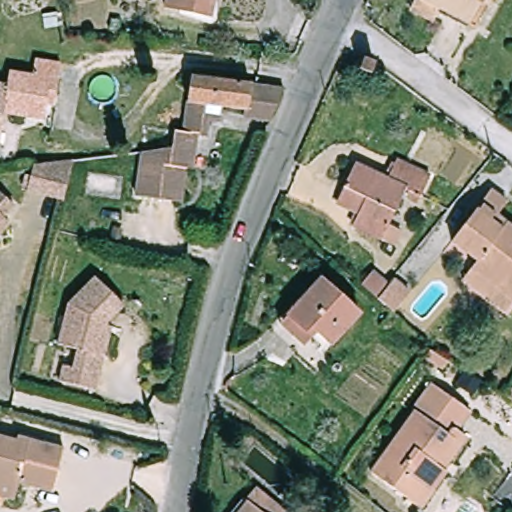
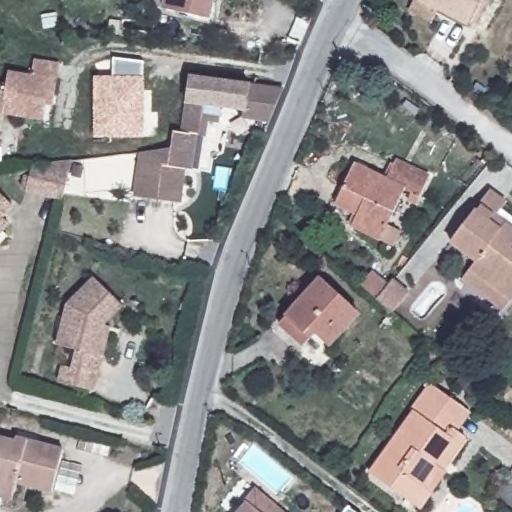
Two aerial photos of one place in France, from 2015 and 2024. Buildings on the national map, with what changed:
unchanged [(167,8),(168,0),(217,0),(214,18),(167,8)]
unchanged [(443,4),(436,18),(412,4),(414,0),(485,0),(473,21),(443,4)]
new [(94,138),(94,76),(112,76),(113,58),(144,62),(143,76),(145,76),(144,138),(94,138)]
unchanged [(58,65),(51,106),(45,104),(42,120),(2,113),(0,121),(0,84),(6,84),(8,73),(32,76),(35,61),(58,65)]
unchanged [(174,147),(177,131),(186,132),(193,77),(287,89),(274,121),(250,118),(251,111),(223,107),(221,124),(211,122),(209,137),(199,135),(194,171),(187,169),(183,198),(168,196),(174,147)]
unchanged [(168,196),(140,192),(145,151),(174,147),(168,196)]
unchanged [(28,189),(35,164),(76,159),(66,199),(28,189)]
unchanged [(356,227),(363,213),(340,202),(359,164),(391,179),(400,160),(434,177),(424,197),(409,190),(392,225),(405,231),(397,247),(356,227)]
unchanged [(474,272),(447,252),(492,189),(510,203),(500,217),(512,226),(512,307),(508,313),(466,282),(474,272)]
unchanged [(17,207),(6,218),(13,224),(0,237),(0,190),(17,207)]
unchanged [(392,312),(375,298),(359,284),(370,272),(385,285),(391,278),(408,292),(392,312)]
unchanged [(60,381),(64,364),(74,366),(78,349),(58,344),(69,303),(98,275),(127,305),(108,324),(114,325),(97,391),(60,381)]
unchanged [(325,280),(361,315),(325,353),(313,341),(308,347),(283,323),(325,280)]
unchanged [(416,409),(435,383),(474,412),(460,431),(470,438),(447,469),(450,472),(423,509),(374,473),(418,411),(416,409)]
unchanged [(507,386),(512,390),(512,404),(502,396),(507,386)]
unchanged [(0,495),(0,436),(19,442),(20,438),(67,450),(56,491),(22,482),(20,488),(17,500),(0,495)]
unchanged [(261,484),(295,512),(237,512),(261,484)]

